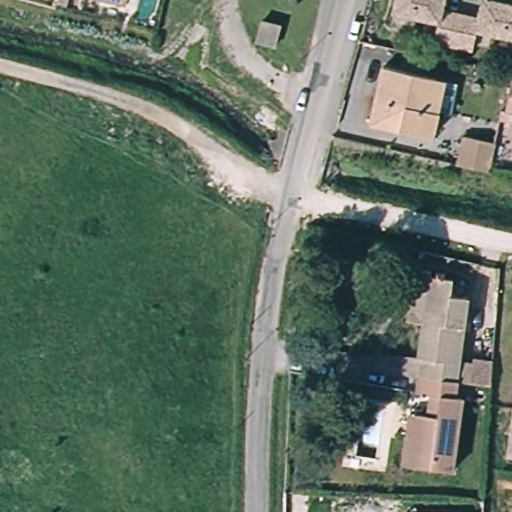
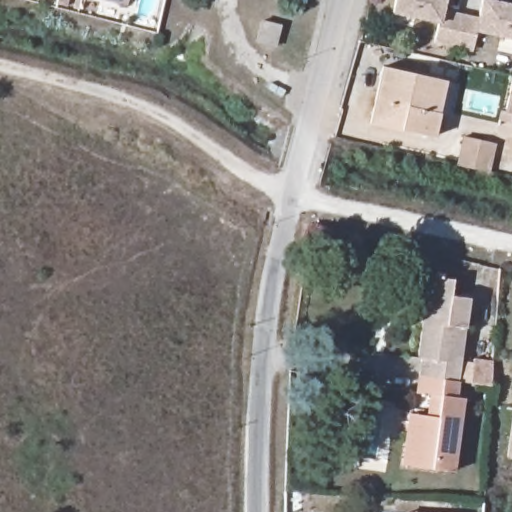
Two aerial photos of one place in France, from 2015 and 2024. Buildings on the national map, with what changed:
unchanged [(458,17),(451,50),(432,46),(436,25),(390,16),(394,0),(443,0),(440,14),(458,17)]
unchanged [(476,21),(480,1),(512,8),(512,42),(475,34),(470,54),(451,50),(458,17),(476,21)]
unchanged [(255,52),(259,32),(278,37),(275,57),(255,52)]
unchanged [(393,131),(395,120),(370,114),(379,67),(425,77),(438,81),(432,111),(427,138),(393,131)]
unchanged [(507,109),(512,86),(512,110),(507,109)]
unchanged [(495,140),(491,167),(461,164),(464,136),(495,140)]
unchanged [(405,318),(410,267),(427,270),(427,275),(425,275),(420,321),(405,318)]
unchanged [(419,357),(415,357),(420,321),(425,275),(449,277),(447,293),(465,296),(457,360),(470,362),(470,357),(490,361),(488,385),(455,380),(453,380),(417,374),(419,357)]
unchanged [(436,415),(438,393),(415,391),(417,374),(453,380),(452,394),(460,395),(452,469),(415,465),(402,462),(408,412),(421,413),(436,415)]
unchanged [(507,457),(512,423),(512,458),(507,457)]

